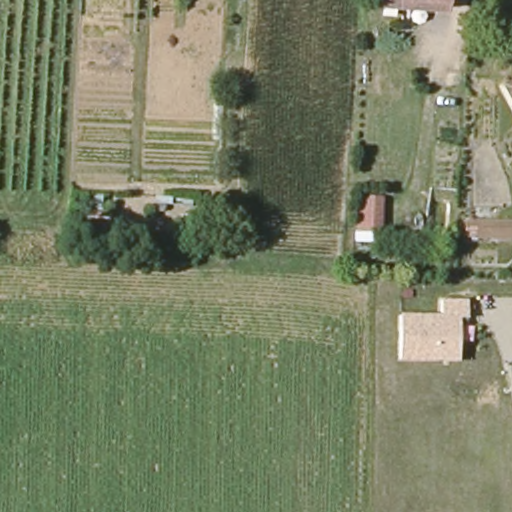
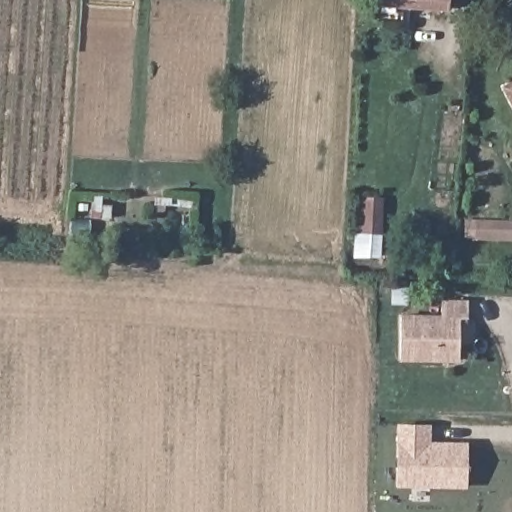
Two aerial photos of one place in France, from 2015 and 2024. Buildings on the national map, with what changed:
unchanged [(410,11),(378,9),(378,0),(448,0),(448,12),(410,11)]
unchanged [(510,94),(512,93),(512,100),(510,94)]
demolished [(459,154),(431,151),(434,100),(463,102),(459,154)]
unchanged [(382,237),(355,237),(358,199),(383,198),(382,237)]
unchanged [(512,226),(512,242),(479,240),(479,224),(512,226)]
unchanged [(442,299),(468,300),(469,318),(461,318),(459,361),(400,361),(400,314),(442,314),(442,299)]
new [(467,488),(397,487),(397,424),(432,424),(432,440),(468,441),(467,488)]

